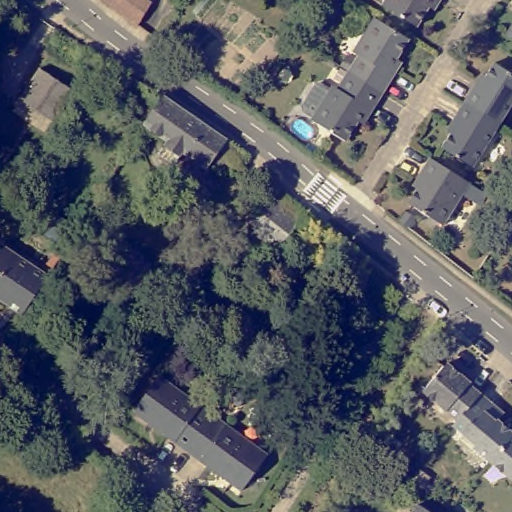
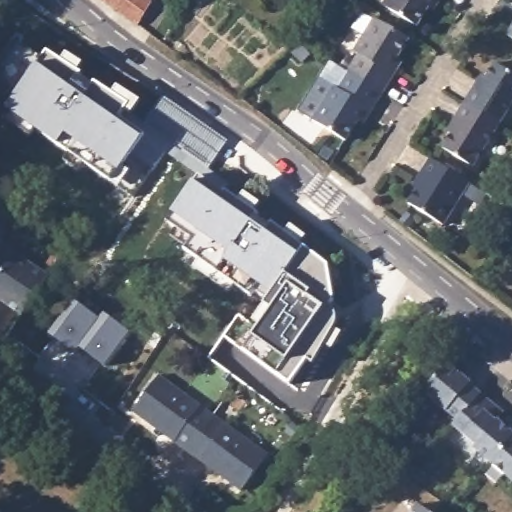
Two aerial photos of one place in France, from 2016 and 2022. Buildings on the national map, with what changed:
unchanged [(136,23),(105,0),(152,0),(150,2),(136,23)]
unchanged [(383,0),(434,0),(421,24),(383,0)]
unchanged [(388,71),(393,75),(384,89),(349,67),(357,54),(352,49),(373,15),(410,37),(388,71)]
unchanged [(512,19),(512,40),(503,34),(512,19)]
new [(11,116),(5,110),(13,97),(0,87),(0,72),(2,63),(17,44),(42,59),(46,52),(61,61),(65,52),(83,64),(78,72),(111,94),(116,86),(141,102),(131,117),(122,112),(117,119),(145,138),(129,163),(151,171),(132,198),(110,183),(109,181),(54,147),(34,132),(31,139),(7,122),(11,116)]
unchanged [(483,89),(499,62),(512,70),(512,105),(502,121),(467,100),(476,85),(483,89)]
demolished [(19,97),(39,66),(74,89),(54,120),(19,97)]
unchanged [(374,104),(369,102),(343,140),(309,118),(334,80),(340,84),(349,67),(384,89),(374,104)]
unchanged [(167,136),(144,121),(164,91),(197,114),(237,143),(232,151),(230,150),(228,154),(225,157),(221,159),(216,159),(212,157),(207,164),(182,147),(175,159),(159,149),(167,136)]
unchanged [(478,161),(449,143),(462,120),(457,116),(467,100),(502,121),(478,161)]
unchanged [(444,222),(408,198),(427,168),(423,166),(429,154),(470,180),(444,222)]
new [(198,176),(237,200),(242,191),(261,204),(254,214),(258,217),(257,218),(268,226),(271,221),(283,230),(288,224),(306,237),(302,243),(330,267),(333,301),(330,305),(336,313),(337,321),(333,329),(342,334),(328,357),(319,352),(312,364),(305,359),(288,385),(241,351),(251,337),(269,311),(262,305),(264,303),(253,294),(250,297),(235,287),(230,295),(190,268),(197,259),(182,250),(188,240),(165,223),(198,176)]
unchanged [(10,192),(2,204),(0,203),(0,186),(10,192)]
demolished [(278,250),(248,227),(275,192),(304,215),(278,250)]
unchanged [(0,300),(0,244),(46,273),(21,313),(0,300)]
new [(74,300),(99,320),(104,314),(129,333),(103,367),(78,347),(73,355),(49,334),(74,300)]
unchanged [(419,391),(443,361),(464,378),(462,380),(476,391),(453,419),(419,391)]
unchanged [(133,408),(159,372),(214,412),(187,448),(133,408)]
unchanged [(488,457),(467,440),(469,437),(450,422),(453,419),(476,391),(490,403),(498,410),(494,416),(511,429),(488,457)]
unchanged [(267,451),(241,487),(187,448),(214,412),(267,451)]
unchanged [(512,478),(488,457),(511,429),(512,431),(512,478)]
unchanged [(420,505),(430,512),(415,512),(420,505)]

